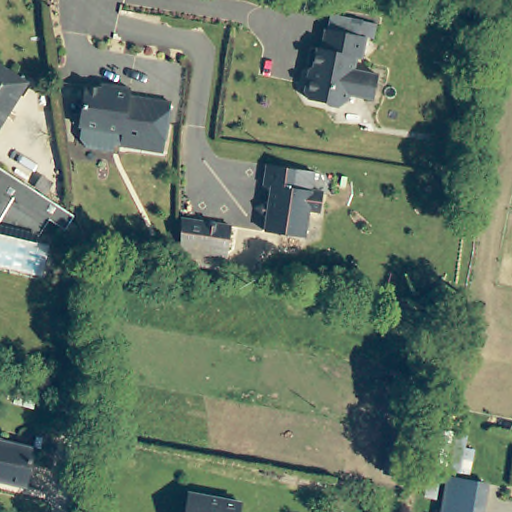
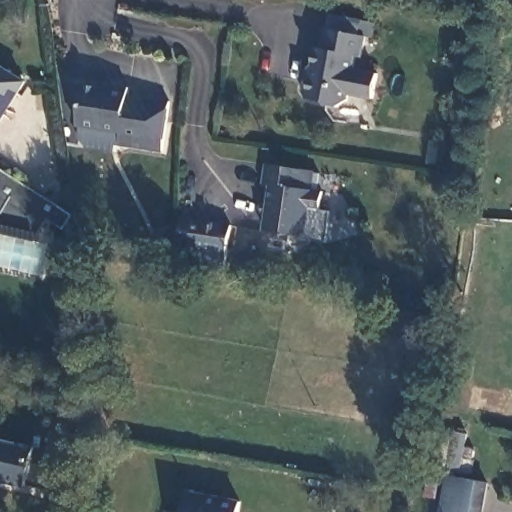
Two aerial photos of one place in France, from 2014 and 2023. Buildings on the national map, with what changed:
unchanged [(335,6),(365,11),(361,27),(369,29),(366,51),(360,51),(358,63),(381,69),(376,92),(354,89),(352,95),(341,104),(332,103),(330,99),(312,95),(307,85),(309,72),(318,72),(320,63),(314,62),(319,40),(324,41),(329,21),(332,22),(335,6)]
unchanged [(25,80),(0,119),(0,64),(25,80)]
unchanged [(118,146),(91,142),(84,134),(85,122),(82,121),(87,82),(114,85),(115,80),(133,82),(132,91),(174,96),(167,145),(122,139),(119,139),(118,146)]
unchanged [(314,169),(313,188),(326,189),(323,212),(312,211),(309,236),(270,232),(272,217),(264,217),(265,204),(272,205),(275,187),(267,186),(269,164),(314,169)]
unchanged [(65,227),(49,217),(37,235),(36,240),(49,242),(41,277),(0,268),(0,165),(29,185),(37,172),(49,180),(43,193),(74,213),(65,227)]
unchanged [(159,240),(187,240),(187,213),(236,221),(232,257),(229,263),(187,258),(160,257),(159,240)]
unchanged [(429,365),(424,390),(406,385),(412,361),(429,365)]
unchanged [(471,432),(465,471),(464,471),(442,467),(447,428),(471,432)]
unchanged [(35,446),(26,485),(0,479),(0,438),(35,446)]
unchanged [(443,476),(440,498),(428,493),(431,473),(443,476)]
unchanged [(487,512),(445,512),(452,475),(492,482),(487,512)]
unchanged [(237,512),(184,512),(189,491),(240,501),(237,512)]

